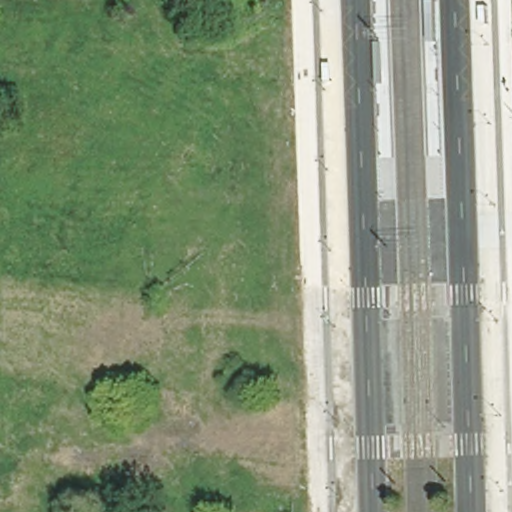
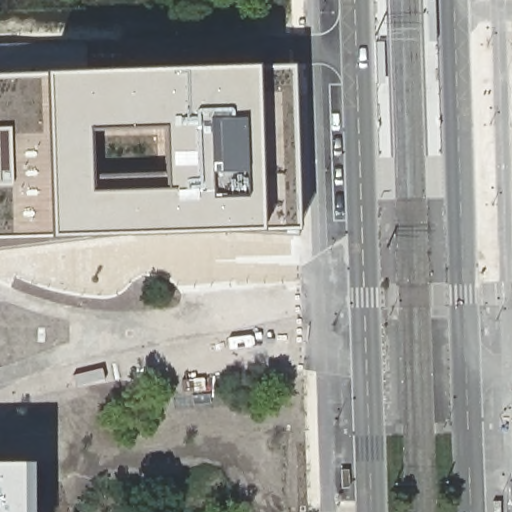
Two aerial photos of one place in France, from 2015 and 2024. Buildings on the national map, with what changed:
new [(262,231),(49,237),(0,239),(0,76),(44,74),(255,65),(293,65),(299,229),(262,231)]
new [(30,462),(31,512),(0,512),(0,462),(30,462)]

